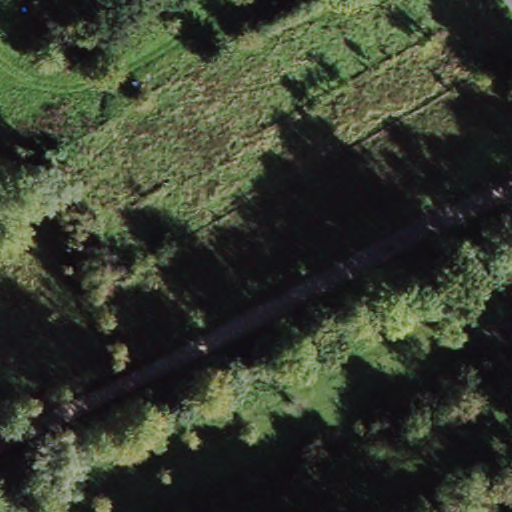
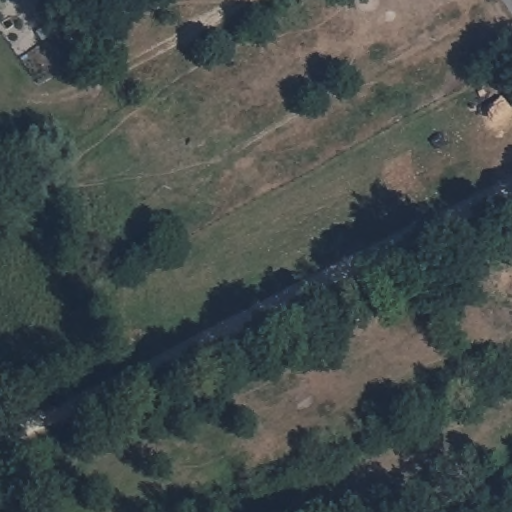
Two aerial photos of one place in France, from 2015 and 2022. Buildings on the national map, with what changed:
[]

